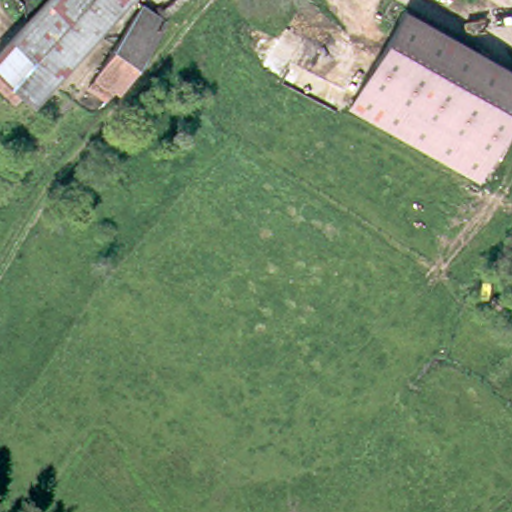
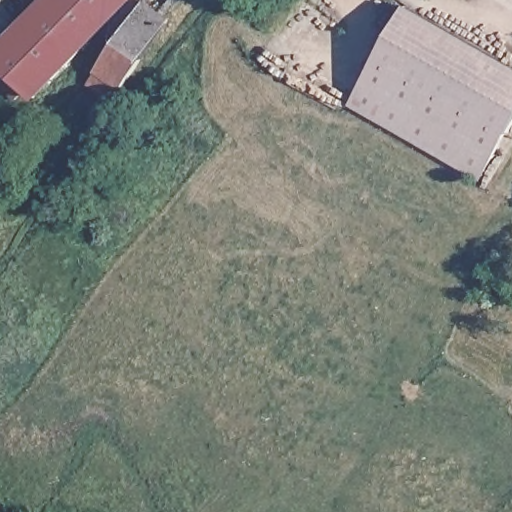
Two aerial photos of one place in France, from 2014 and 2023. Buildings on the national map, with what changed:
unchanged [(72,52),(29,95),(0,65),(0,37),(38,0),(126,0),(72,52)]
unchanged [(92,69),(140,0),(162,18),(114,85),(92,69)]
unchanged [(351,101),(402,10),(512,70),(512,113),(480,172),(351,101)]

